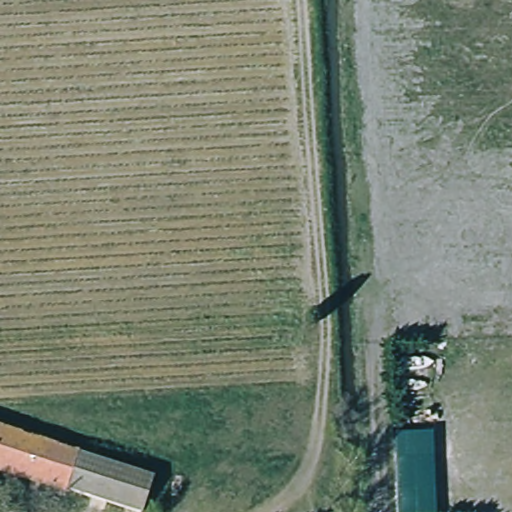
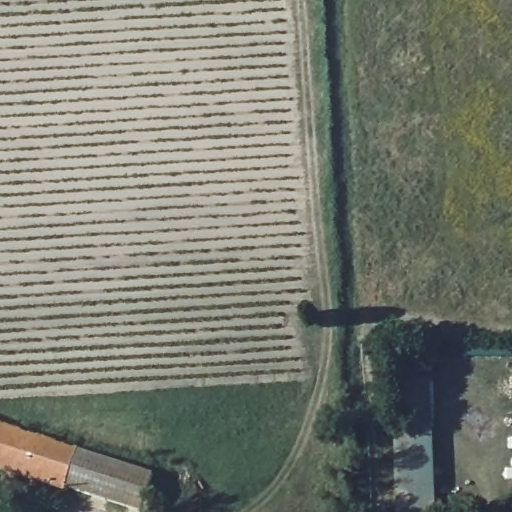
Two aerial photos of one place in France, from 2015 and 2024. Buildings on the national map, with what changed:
unchanged [(142,508),(68,485),(63,485),(0,465),(0,425),(152,472),(142,508)]
unchanged [(395,431),(436,431),(441,512),(398,512),(395,431)]

